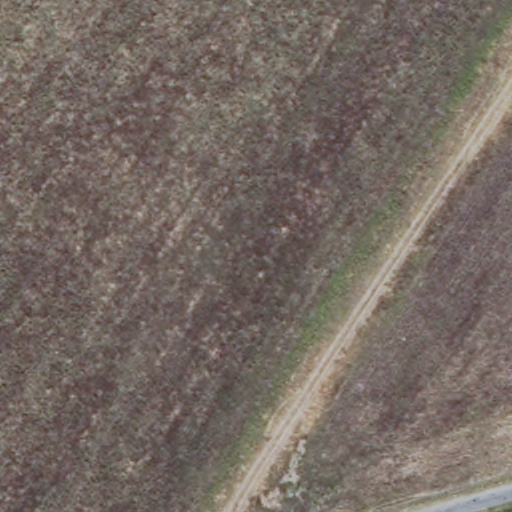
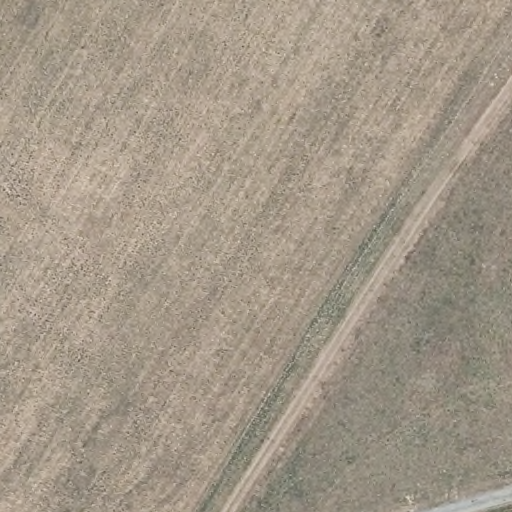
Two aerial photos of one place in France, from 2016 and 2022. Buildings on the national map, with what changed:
[]

